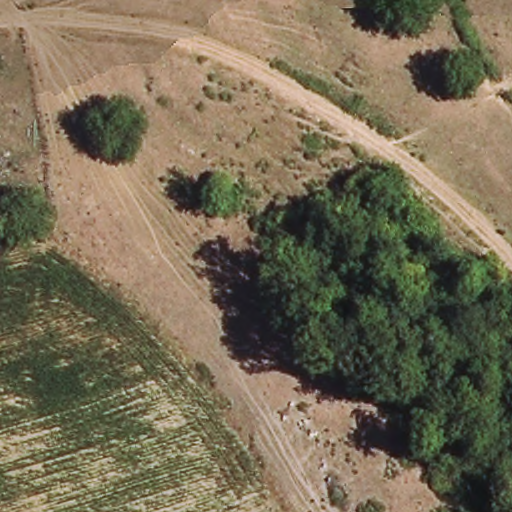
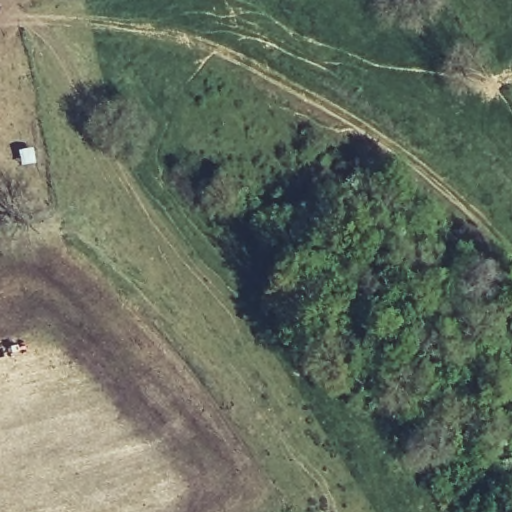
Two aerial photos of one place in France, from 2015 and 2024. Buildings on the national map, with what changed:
unchanged [(231,161),(220,172),(206,161),(217,148),(231,161)]

